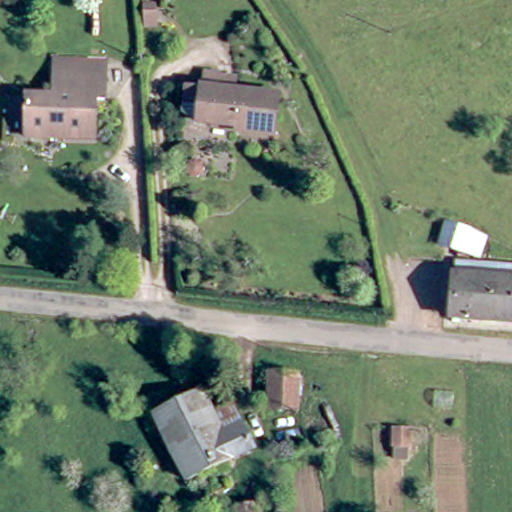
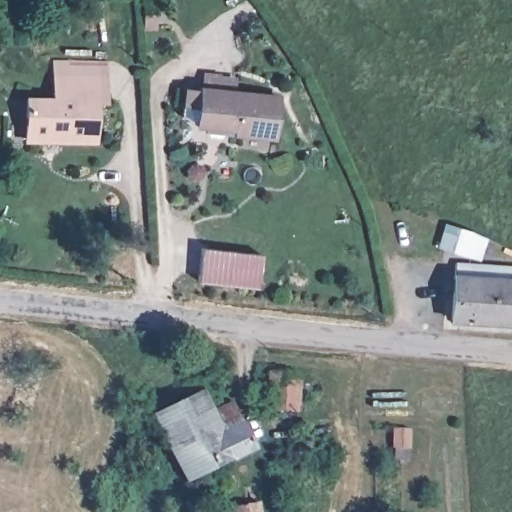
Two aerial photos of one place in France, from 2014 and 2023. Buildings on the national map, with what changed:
unchanged [(31,94),(58,96),(60,60),(108,63),(106,101),(100,100),(97,140),(28,136),(31,94)]
unchanged [(280,152),(240,147),(241,141),(201,137),(187,127),(190,99),(208,101),(210,88),(224,90),(224,91),(242,93),(240,105),(283,110),(280,152)]
unchanged [(480,261),(444,251),(450,228),(485,242),(492,245),(485,263),(480,261)]
new [(200,246),(261,254),(256,288),(196,280),(200,246)]
unchanged [(460,268),(512,272),(512,327),(457,324),(460,268)]
unchanged [(281,375),(310,379),(305,416),(277,410),(281,375)]
unchanged [(155,421),(203,397),(223,439),(245,429),(258,454),(190,490),(181,471),(155,421)]
unchanged [(265,512),(263,512),(265,511),(265,512)]

